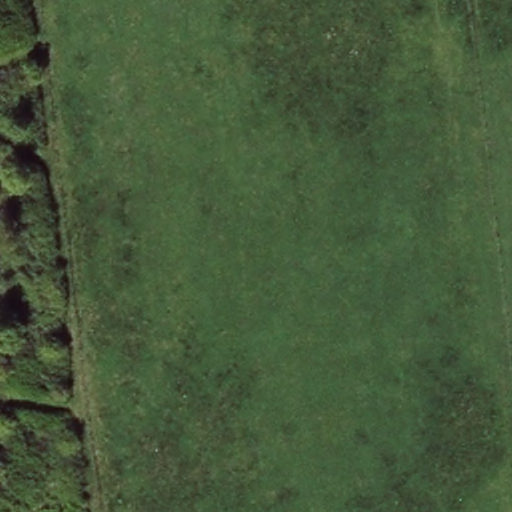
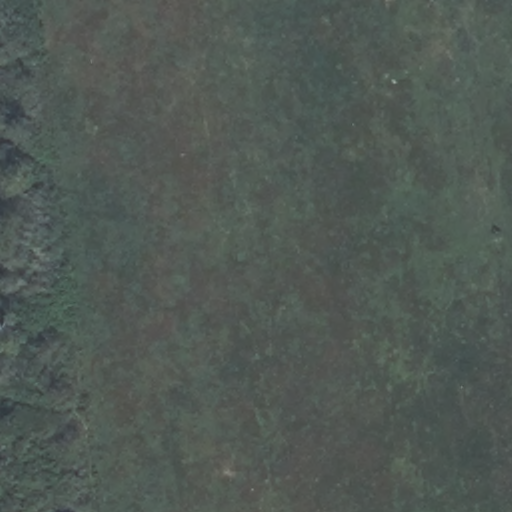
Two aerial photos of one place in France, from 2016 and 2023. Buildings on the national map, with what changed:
[]

